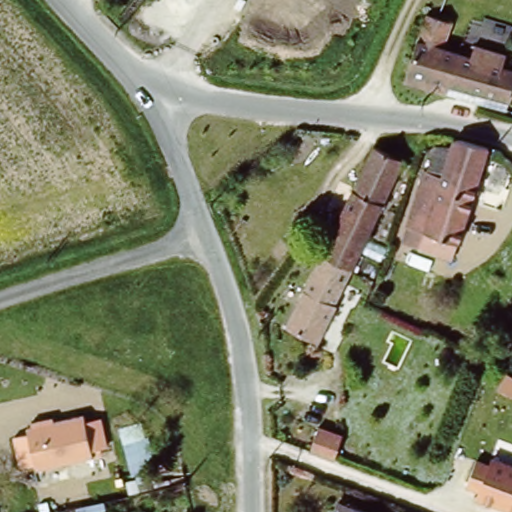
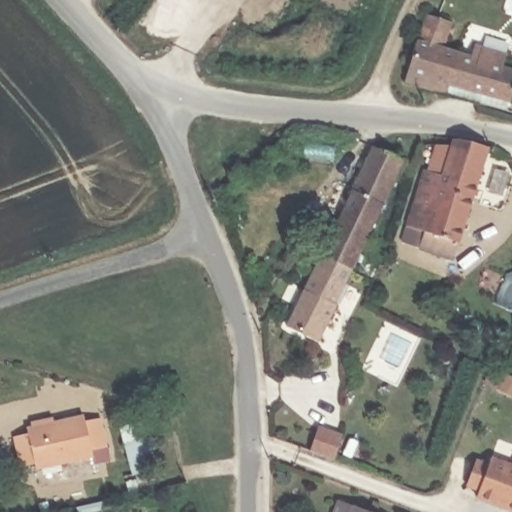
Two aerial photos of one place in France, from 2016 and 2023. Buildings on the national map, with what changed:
unchanged [(446,45),(477,54),(484,34),(512,42),(512,64),(512,66),(512,93),(508,108),(409,79),(430,11),(454,18),(446,45)]
unchanged [(450,244),(448,250),(427,242),(432,231),(414,224),(433,169),(436,169),(446,142),(461,143),(462,141),(480,142),(494,147),(459,247),(450,244)]
unchanged [(318,246),(367,146),(406,161),(399,183),(392,201),(378,195),(345,261),(318,246)]
unchanged [(368,229),(384,235),(387,236),(378,256),(374,254),(366,252),(363,262),(358,261),(354,259),(355,256),(368,229)]
unchanged [(313,335),(281,320),(318,246),(345,261),(326,298),(330,300),(313,335)]
unchanged [(46,467),(30,470),(23,435),(39,432),(38,428),(92,420),(93,423),(106,421),(113,456),(99,458),(99,460),(46,470),(46,467)]
unchanged [(304,423),(321,432),(313,452),(294,445),(304,423)]
unchanged [(479,490),(465,487),(474,459),(484,463),(488,453),(512,461),(512,512),(510,512),(476,500),(479,490)]
unchanged [(344,512),(349,502),(374,512),(344,512)]

